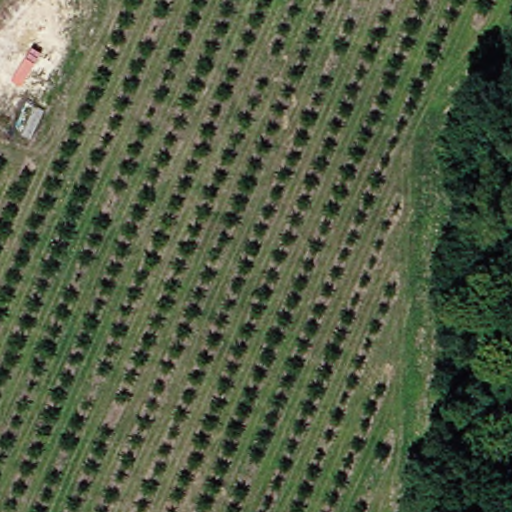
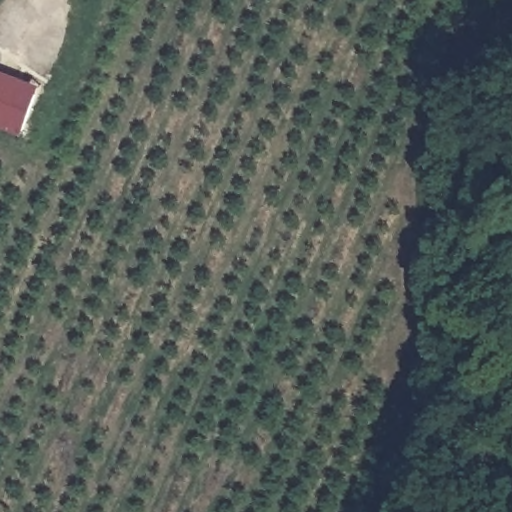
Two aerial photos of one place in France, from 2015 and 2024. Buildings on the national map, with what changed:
new [(44,84),(25,133),(0,125),(0,69),(44,84)]

